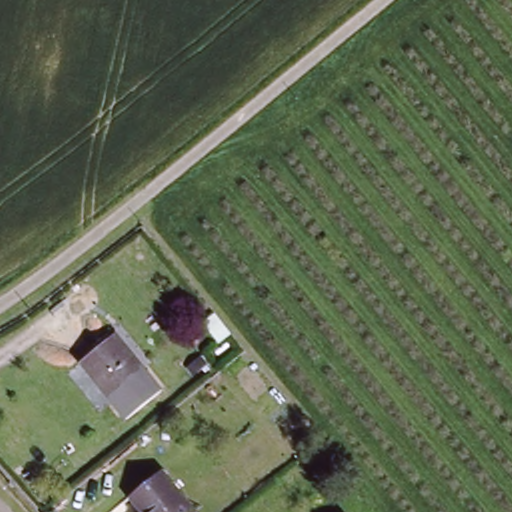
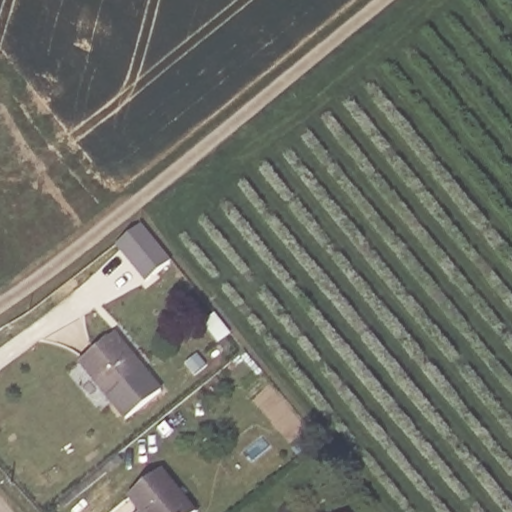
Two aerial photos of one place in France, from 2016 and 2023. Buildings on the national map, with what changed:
new [(147,224),(176,261),(151,281),(121,244),(147,224)]
unchanged [(116,334),(128,349),(123,353),(141,374),(146,371),(164,393),(129,422),(81,363),(116,334)]
unchanged [(132,492),(166,466),(198,508),(193,512),(140,512),(145,508),(132,492)]

